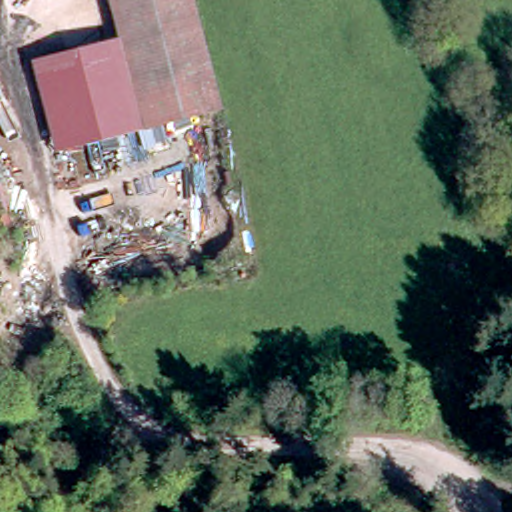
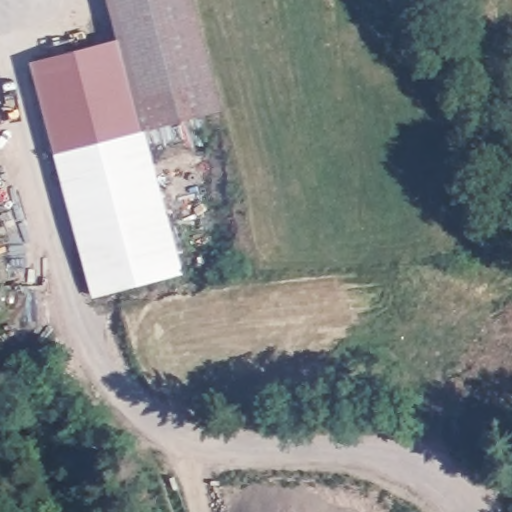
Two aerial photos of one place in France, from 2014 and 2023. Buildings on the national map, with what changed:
unchanged [(110,0),(193,0),(221,110),(145,134),(122,45),(110,0)]
unchanged [(55,151),(31,61),(121,39),(122,45),(145,134),(55,151)]
new [(184,274),(93,298),(55,151),(145,134),(184,274)]

